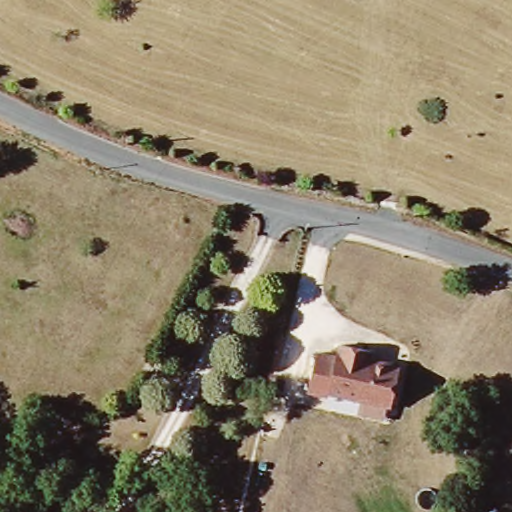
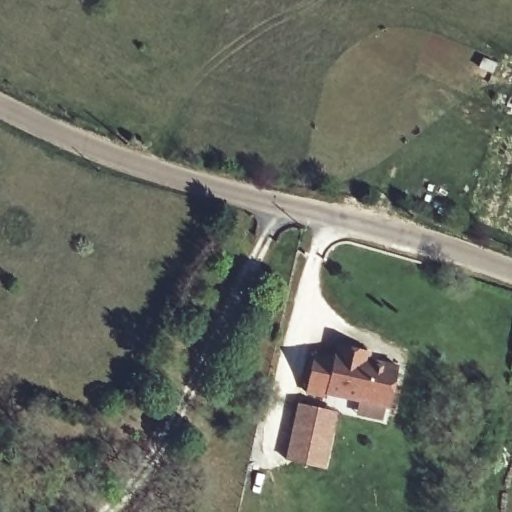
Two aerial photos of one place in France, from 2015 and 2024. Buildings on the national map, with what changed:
unchanged [(358,416),(361,402),(328,395),(328,399),(309,395),(316,356),(337,360),(340,347),(369,353),(369,362),(400,369),(391,409),(387,408),(384,422),(358,416)]
new [(299,405),(336,411),(325,469),(287,459),(299,405)]

